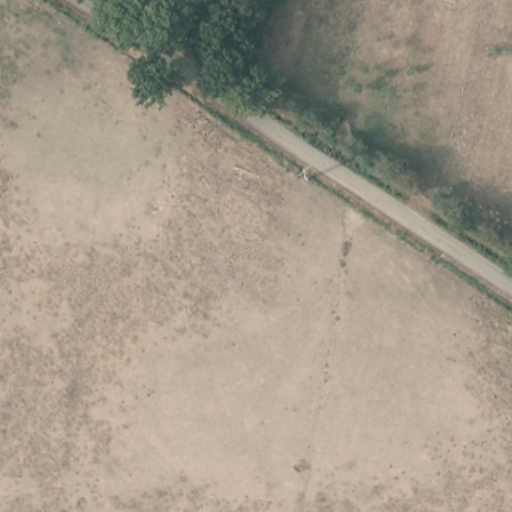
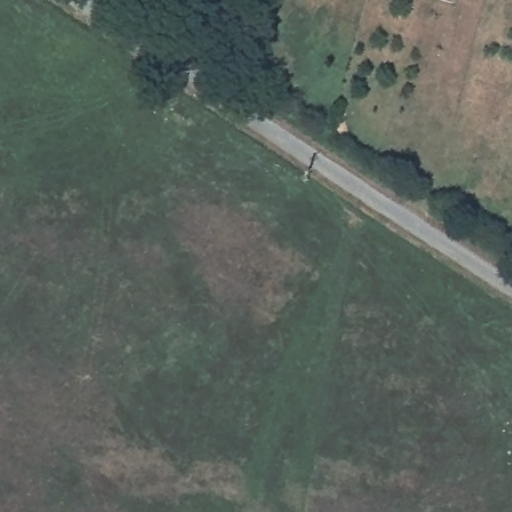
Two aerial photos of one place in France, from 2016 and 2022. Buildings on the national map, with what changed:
unchanged [(189,1),(185,9),(175,5),(177,0),(204,0),(201,6),(189,1)]

